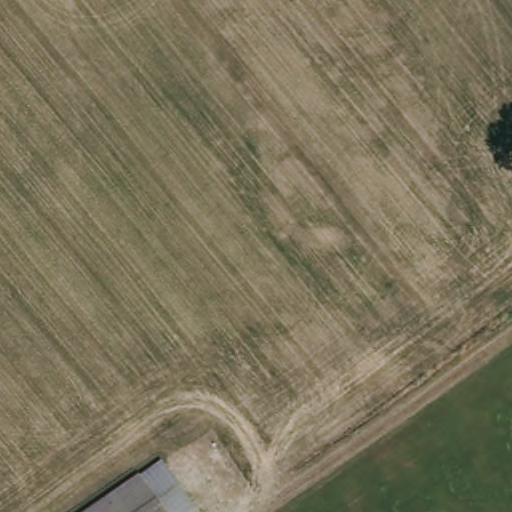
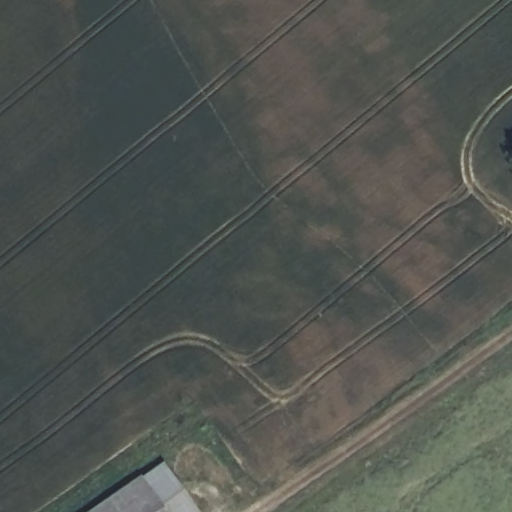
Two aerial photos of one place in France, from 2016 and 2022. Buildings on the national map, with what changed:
unchanged [(184,512),(94,512),(155,470),(184,512)]

